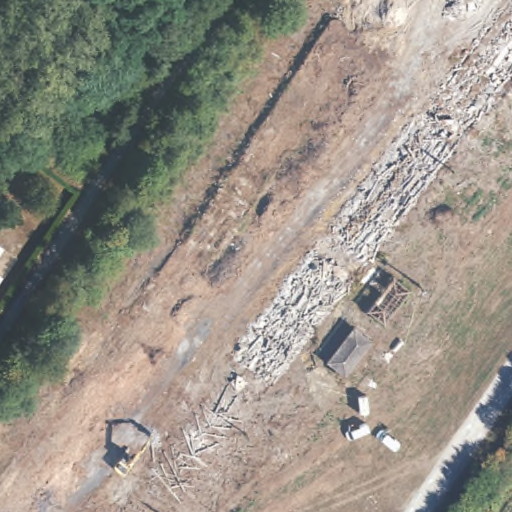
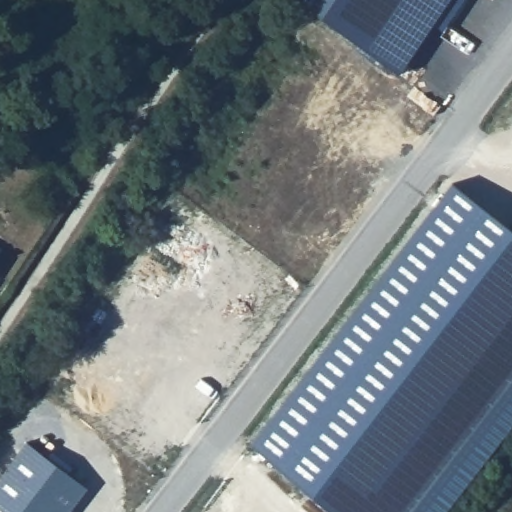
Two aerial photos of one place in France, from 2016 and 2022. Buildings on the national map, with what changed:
new [(304,0),(449,0),(399,74),(302,4),(304,0)]
new [(512,228),(512,429),(448,512),(332,512),(251,445),(452,183),(512,228)]
demolished [(407,288),(382,326),(361,313),(389,276),(407,288)]
demolished [(365,340),(339,376),(321,361),(346,330),(365,340)]

